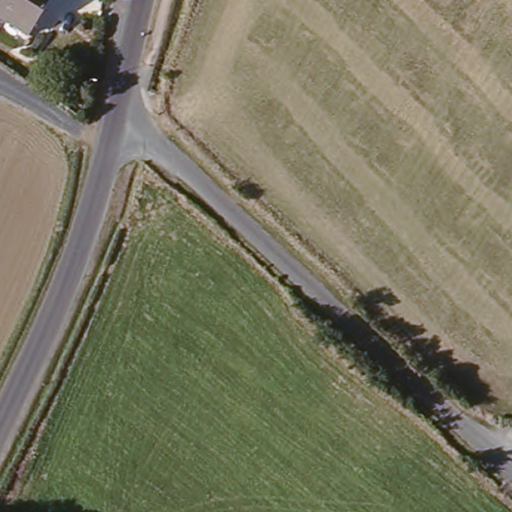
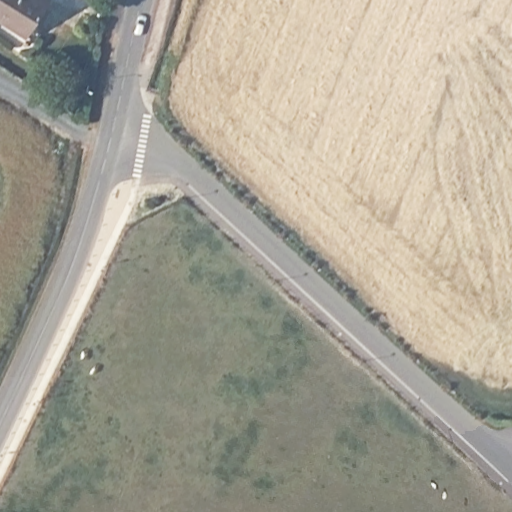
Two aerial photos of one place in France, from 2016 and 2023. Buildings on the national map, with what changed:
unchanged [(19,39),(0,26),(0,0),(42,0),(19,39)]

